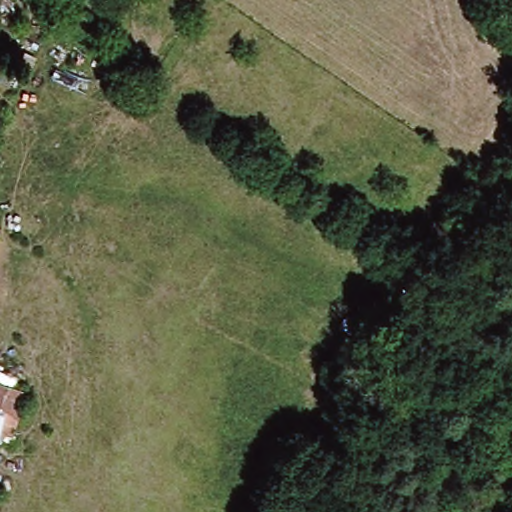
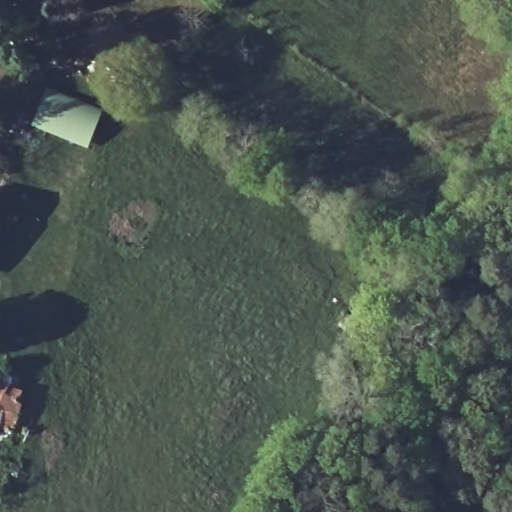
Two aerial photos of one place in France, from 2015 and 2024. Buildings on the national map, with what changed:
new [(90,147),(61,141),(62,136),(35,131),(37,118),(44,109),(44,98),(48,88),(105,112),(100,120),(90,147)]
unchanged [(18,435),(2,430),(0,438),(0,381),(27,388),(18,435)]

